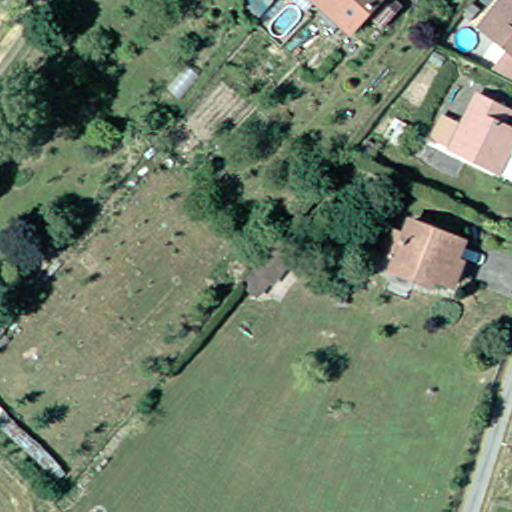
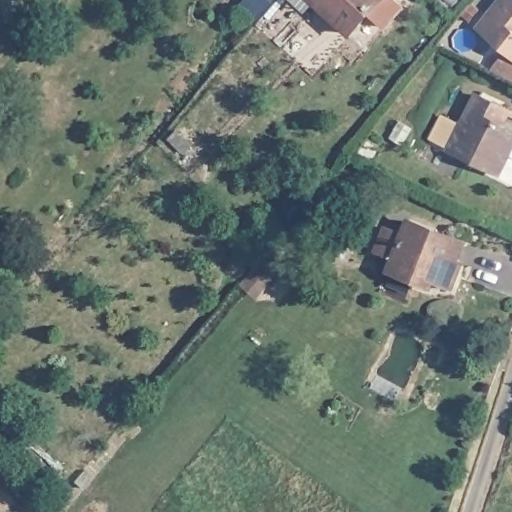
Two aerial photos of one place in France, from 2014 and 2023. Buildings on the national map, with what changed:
unchanged [(315,1),(302,18),(282,1),(283,0),(391,0),(388,4),(403,16),(385,39),(369,25),(355,40),(345,30),(330,44),(317,29),(330,16),(315,1)]
unchanged [(500,0),(512,0),(512,55),(478,34),(500,0)]
unchanged [(499,182),(447,161),(447,160),(427,151),(435,130),(456,138),(467,106),(502,120),(497,134),(507,138),(512,140),(512,166),(506,164),(499,182)]
unchanged [(395,264),(397,260),(380,253),(390,230),(405,236),(412,223),(465,244),(457,263),(465,266),(455,292),(436,285),(434,290),(418,284),(392,274),(395,264)]
unchanged [(252,294),(257,299),(247,311),(223,290),(240,271),(258,248),(278,264),(265,280),(252,294)]

